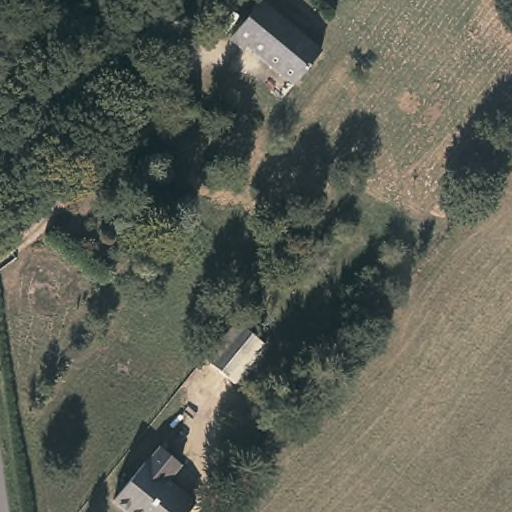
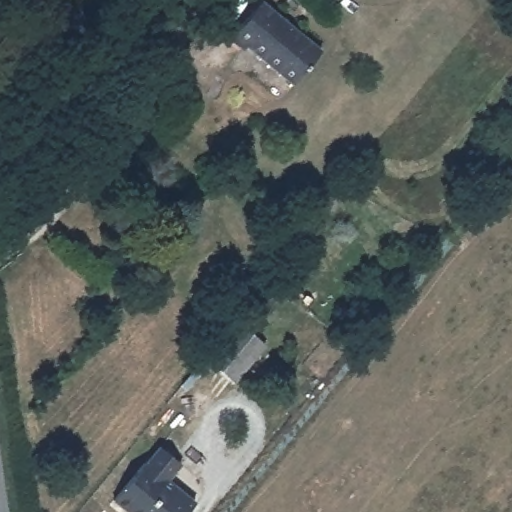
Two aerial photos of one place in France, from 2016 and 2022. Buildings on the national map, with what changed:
unchanged [(323,48),(297,82),(251,46),(244,49),(229,36),(258,0),(262,0),(323,48)]
unchanged [(263,339),(234,376),(206,352),(234,317),(263,339)]
unchanged [(175,476),(200,497),(186,512),(139,512),(115,492),(145,454),(150,458),(163,440),(187,459),(175,476)]

